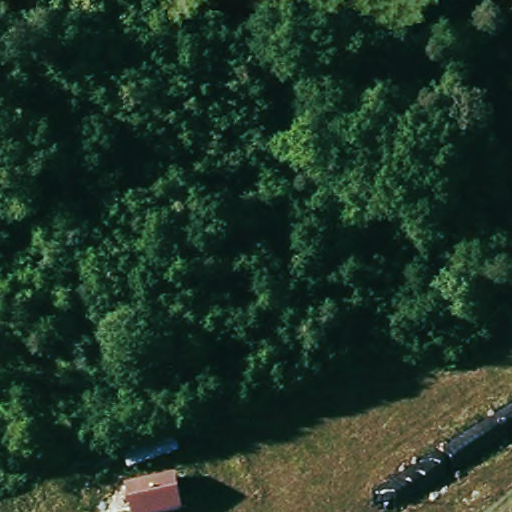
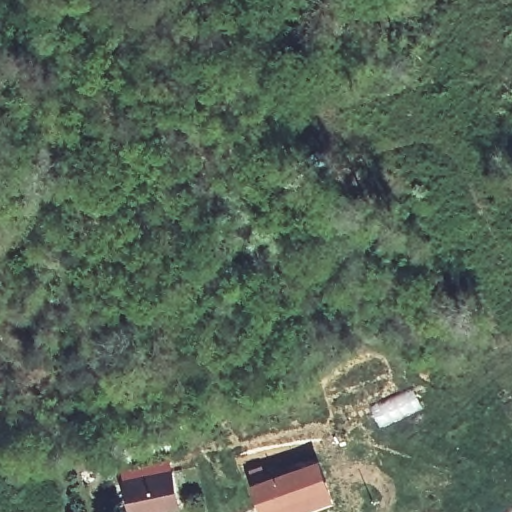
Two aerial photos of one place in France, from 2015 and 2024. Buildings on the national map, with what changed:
new [(333,501),(302,512),(263,512),(251,482),(318,458),(333,501)]
unchanged [(176,471),(182,511),(176,512),(131,512),(125,481),(176,471)]

